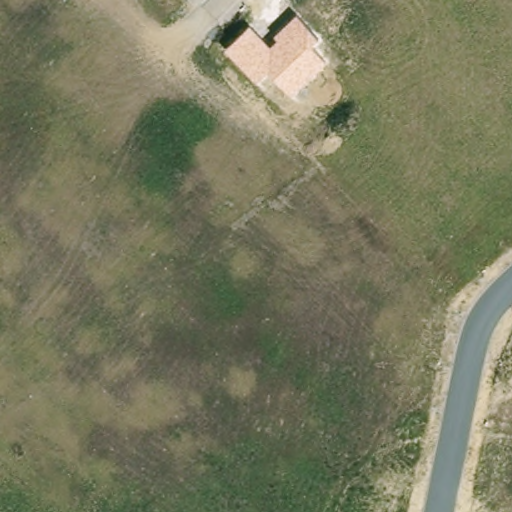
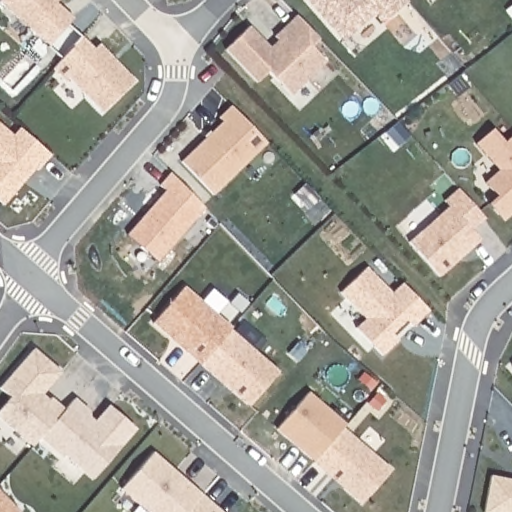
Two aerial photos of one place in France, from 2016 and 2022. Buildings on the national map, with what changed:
new [(55,4),(60,8),(73,19),(49,46),(0,3),(0,1),(1,0),(59,0),(55,4)]
new [(411,5),(386,26),(378,17),(346,45),(307,0),(408,0),(411,5)]
unchanged [(249,25),(271,46),(278,39),(273,35),(296,14),(318,36),(308,45),(325,64),(291,97),(266,71),(256,80),(225,51),(249,25)]
new [(82,38),(95,51),(100,46),(135,83),(103,114),(69,79),(65,82),(54,70),(82,38)]
new [(207,140),(224,123),(220,119),(232,107),(269,145),(215,196),(183,164),(207,140)]
new [(0,202),(0,125),(14,137),(21,130),(52,156),(39,171),(37,170),(24,184),(5,206),(0,202)]
new [(494,129),(506,142),(512,137),(512,215),(505,220),(490,204),(499,196),(487,182),(501,170),(478,144),(494,129)]
new [(475,246),(442,276),(411,242),(450,206),(445,200),(459,188),(486,217),(473,230),(479,235),(482,240),(475,246)]
new [(154,323),(186,287),(233,328),(232,330),(201,365),(188,353),(173,340),(154,323)]
new [(232,330),(280,372),(250,407),(201,365),(232,330)]
new [(44,393),(49,398),(52,396),(64,407),(75,396),(90,409),(90,416),(95,420),(108,405),(136,428),(93,480),(64,454),(61,457),(41,437),(32,446),(0,418),(0,409),(10,397),(0,389),(0,387),(33,347),(61,373),(44,393)]
new [(310,392),(347,425),(315,462),(278,430),(310,392)]
new [(390,468),(361,505),(315,462),(345,427),(390,468)]
new [(191,485),(203,495),(189,512),(148,512),(122,490),(154,453),(182,477),(191,485)]
new [(485,512),(492,476),(512,480),(512,512),(485,512)]
new [(19,512),(0,512),(0,491),(20,511),(19,512)]
new [(213,511),(214,512),(189,512),(203,495),(215,507),(213,511)]

